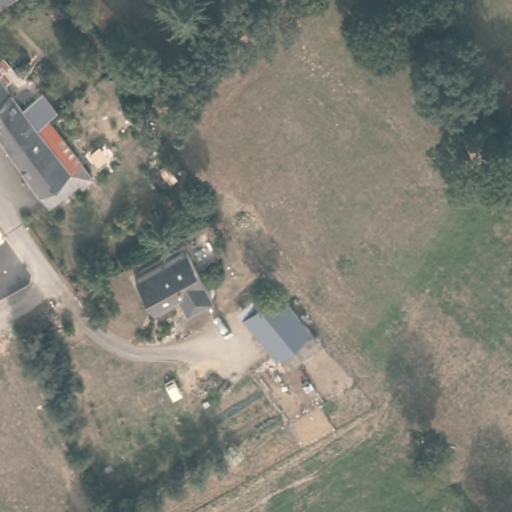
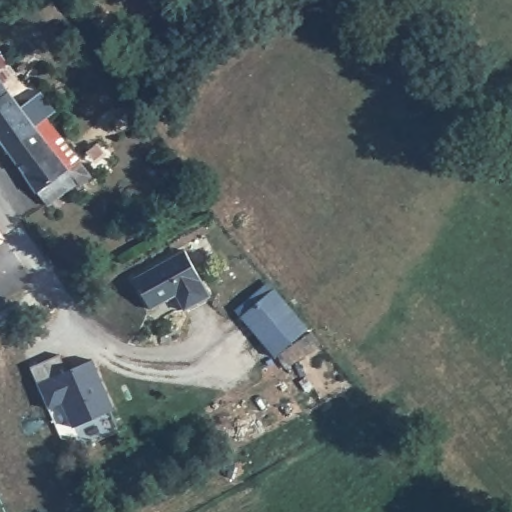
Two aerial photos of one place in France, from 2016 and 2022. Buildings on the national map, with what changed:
unchanged [(4,81),(36,127),(9,148),(0,135),(0,49),(16,71),(4,81)]
unchanged [(82,183),(80,181),(49,205),(15,156),(9,148),(36,127),(47,119),(81,160),(92,175),(82,183)]
unchanged [(212,295),(187,310),(177,295),(152,308),(135,278),(187,250),(212,295)]
unchanged [(263,341),(247,322),(278,295),(295,314),(307,328),(273,353),(263,341)]
new [(62,354),(69,370),(94,360),(116,410),(74,427),(63,404),(49,409),(31,366),(62,354)]

